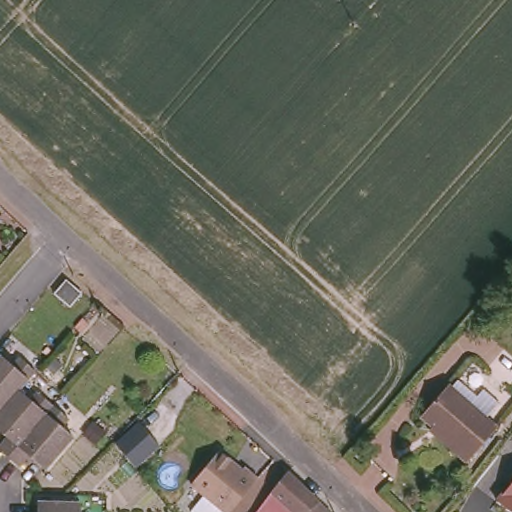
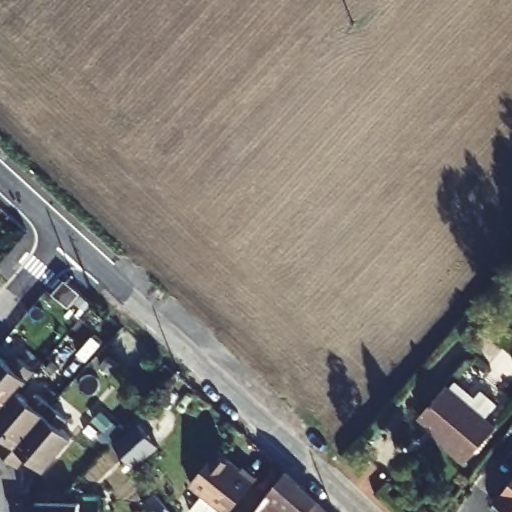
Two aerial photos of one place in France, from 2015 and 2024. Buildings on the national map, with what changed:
unchanged [(54,294),(55,293),(67,279),(70,282),(82,292),(68,306),(54,294)]
unchanged [(17,361),(25,354),(39,368),(22,386),(0,410),(0,357),(6,350),(17,361)]
unchanged [(492,423),(463,457),(452,447),(456,443),(420,410),(445,381),(492,423)]
unchanged [(0,450),(0,441),(6,434),(0,429),(0,410),(22,386),(33,395),(40,389),(56,403),(7,456),(0,450)]
unchanged [(17,466),(7,456),(56,403),(72,417),(65,424),(77,434),(43,469),(27,455),(17,466)]
unchanged [(228,512),(224,512),(190,483),(217,449),(240,469),(242,467),(257,479),(228,512)]
unchanged [(329,509),(327,512),(250,512),(286,467),(317,498),(329,509)]
unchanged [(500,501),(512,485),(512,510),(500,501)]
unchanged [(37,498),(79,499),(79,512),(37,512),(37,498)]

